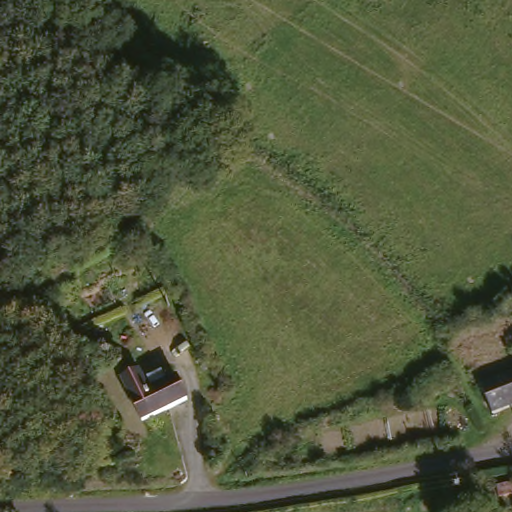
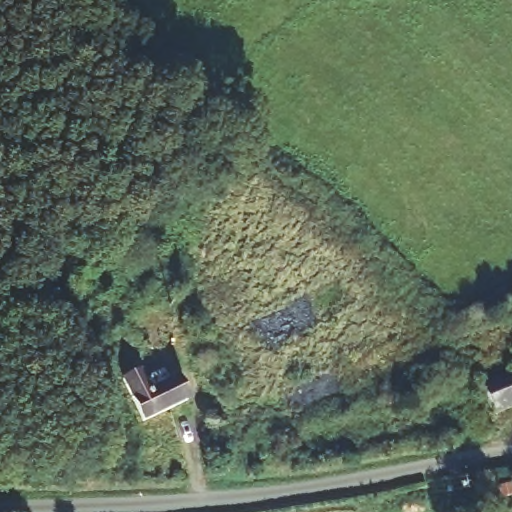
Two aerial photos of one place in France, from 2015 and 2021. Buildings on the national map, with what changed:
unchanged [(130,373),(147,366),(155,385),(161,383),(158,375),(172,369),(177,380),(186,377),(194,397),(150,416),(130,373)]
unchanged [(497,410),(485,379),(512,369),(512,404),(497,410)]

